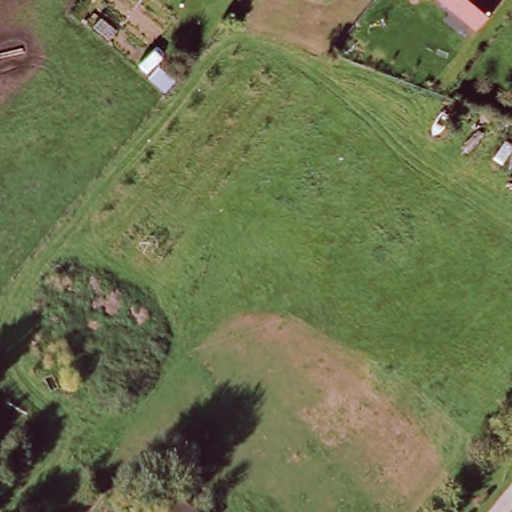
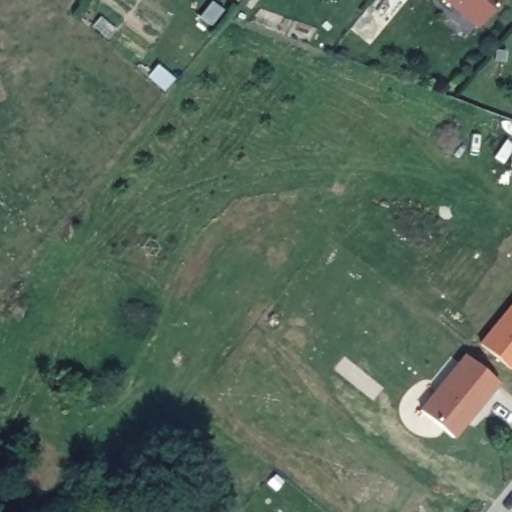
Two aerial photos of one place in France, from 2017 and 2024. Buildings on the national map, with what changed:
unchanged [(478,26),(447,0),(499,0),(478,26)]
new [(478,344),(512,302),(512,370),(511,371),(478,344)]
new [(455,440),(418,411),(463,355),(499,383),(455,440)]

